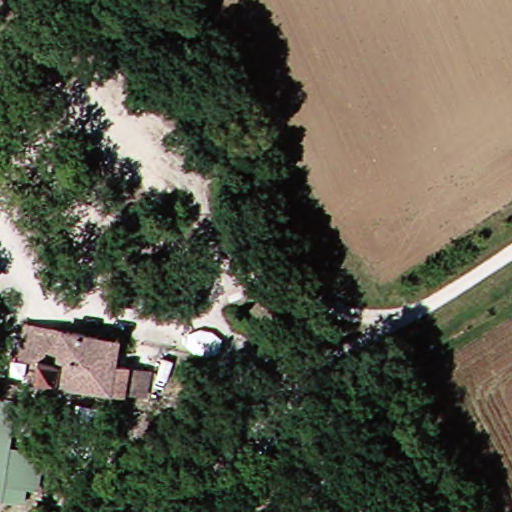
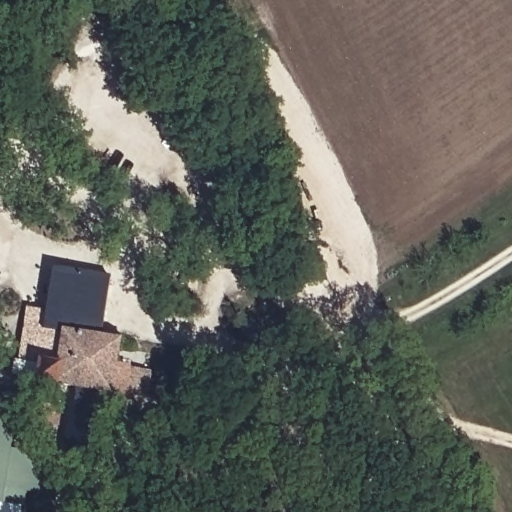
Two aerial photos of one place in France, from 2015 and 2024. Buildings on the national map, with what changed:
new [(98,337),(32,326),(20,323),(24,306),(43,310),(50,266),(108,275),(98,337)]
unchanged [(103,362),(120,363),(114,393),(25,378),(28,345),(15,342),(18,323),(32,326),(107,338),(103,362)]
unchanged [(9,452),(3,490),(0,490),(0,390),(17,392),(9,452)]
unchanged [(9,452),(45,459),(38,497),(3,490),(9,452)]

